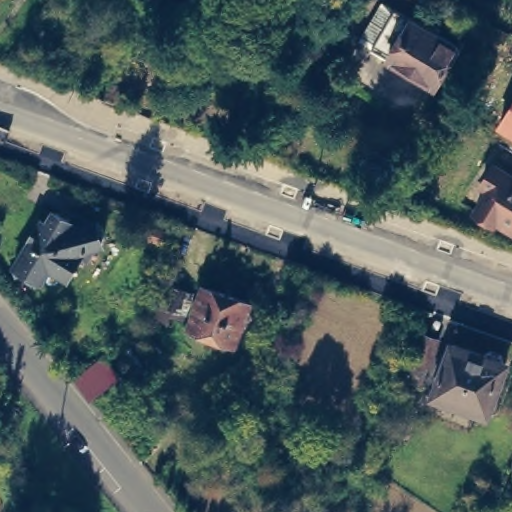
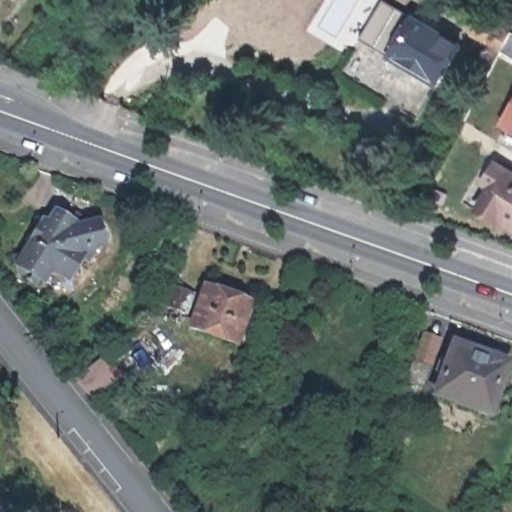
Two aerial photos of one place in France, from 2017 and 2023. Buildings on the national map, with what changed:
unchanged [(177,2),(174,0),(179,0),(177,2)]
unchanged [(388,5),(423,24),(428,16),(441,22),(436,32),(464,48),(443,87),(366,42),(388,5)]
unchanged [(482,17),(507,30),(498,45),(474,31),(482,17)]
unchanged [(512,103),(512,135),(498,126),(512,103)]
unchanged [(496,157),(512,167),(512,220),(501,214),(498,217),(479,206),(493,181),(487,177),(496,157)]
unchanged [(64,270),(46,261),(39,274),(35,272),(32,278),(26,275),(29,268),(21,265),(13,265),(12,251),(20,250),(44,207),(49,209),(51,206),(75,219),(95,217),(101,221),(102,230),(97,237),(79,240),(64,270)]
unchanged [(169,231),(165,242),(151,236),(155,225),(169,231)]
unchanged [(264,304),(254,325),(247,322),(238,341),(194,322),(213,281),(264,304)]
unchanged [(200,294),(190,317),(179,312),(174,323),(161,317),(174,282),(200,294)]
unchanged [(110,355),(151,328),(167,352),(126,379),(110,355)]
unchanged [(441,337),(425,383),(408,377),(425,331),(441,337)]
unchanged [(64,344),(77,360),(71,364),(59,348),(64,344)]
unchanged [(436,398),(455,348),(507,367),(492,408),(484,405),(480,414),(436,398)]
unchanged [(97,364),(106,379),(91,389),(80,375),(97,364)]
unchanged [(512,486),(512,512),(484,512),(498,480),(512,486)]

